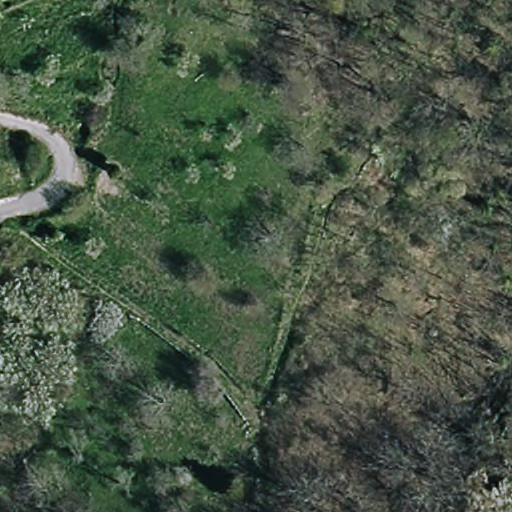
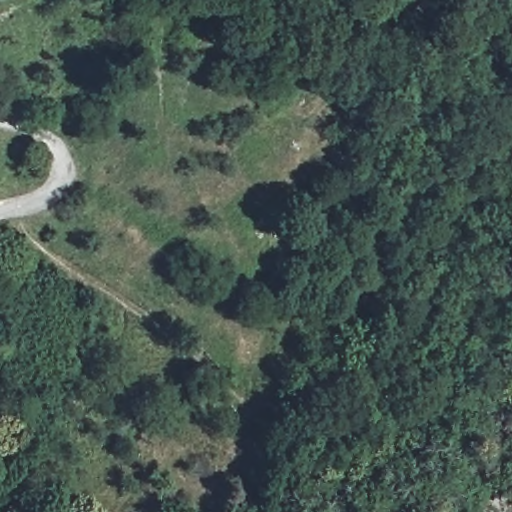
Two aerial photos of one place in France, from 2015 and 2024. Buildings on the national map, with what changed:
[]

